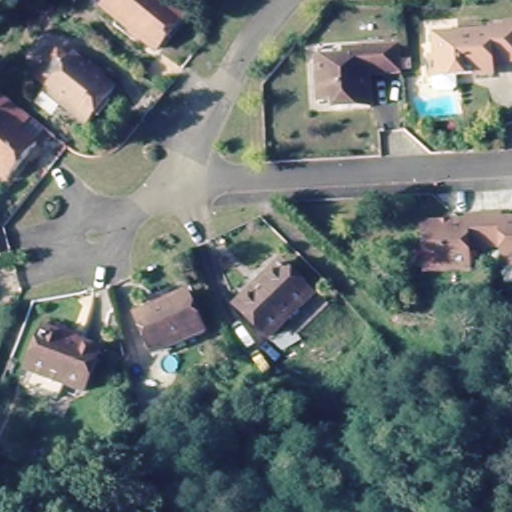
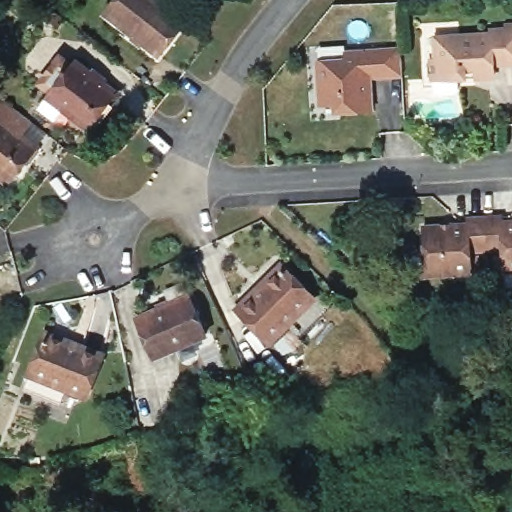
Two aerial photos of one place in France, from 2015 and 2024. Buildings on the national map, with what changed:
unchanged [(112,0),(161,0),(184,17),(156,53),(102,13),(112,0)]
unchanged [(434,56),(440,55),(437,35),(496,30),(495,23),(507,22),(506,12),(512,12),(512,57),(500,58),(501,69),(478,71),(467,72),(436,75),(434,56)]
unchanged [(375,113),(348,116),(347,107),(324,109),(320,67),(348,64),(347,55),(388,51),(402,50),(405,78),(390,79),(372,81),(375,113)]
unchanged [(119,93),(90,131),(46,98),(75,59),(119,93)]
unchanged [(10,99),(29,114),(39,121),(27,137),(41,149),(11,189),(0,181),(0,112),(10,99)]
unchanged [(503,245),(473,246),(473,265),(427,267),(425,223),(470,221),(470,214),(501,213),(501,220),(512,219),(512,263),(504,264),(503,245)]
unchanged [(281,267),(286,272),(316,298),(274,344),(240,314),(256,296),(281,267)]
unchanged [(196,298),(213,339),(156,362),(139,321),(196,298)]
unchanged [(90,397),(32,379),(44,345),(47,334),(82,345),(104,352),(90,397)]

